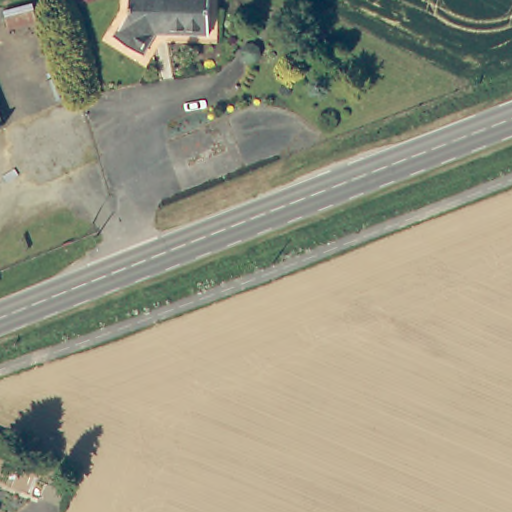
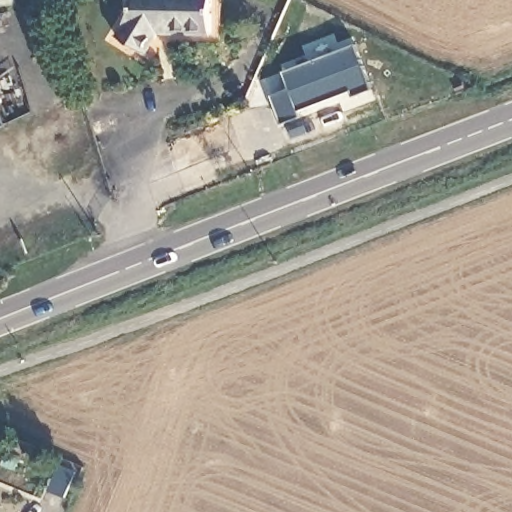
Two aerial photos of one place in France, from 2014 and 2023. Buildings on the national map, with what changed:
unchanged [(156,39),(143,56),(115,38),(131,11),(131,0),(210,0),(211,37),(156,39)]
new [(284,72),(355,45),(369,82),(372,89),(353,95),(351,89),(297,111),(300,116),(281,122),(272,96),(290,89),(284,72)]
unchanged [(0,126),(0,103),(8,122),(0,126)]

